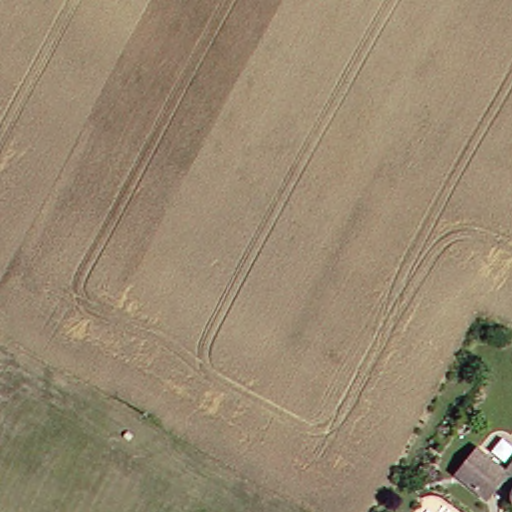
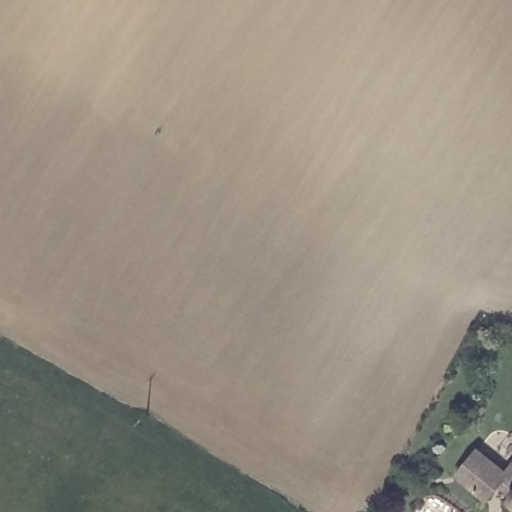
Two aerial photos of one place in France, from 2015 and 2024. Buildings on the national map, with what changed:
unchanged [(489,496),(460,469),(482,446),(508,469),(512,465),(512,491),(504,482),(489,496)]

